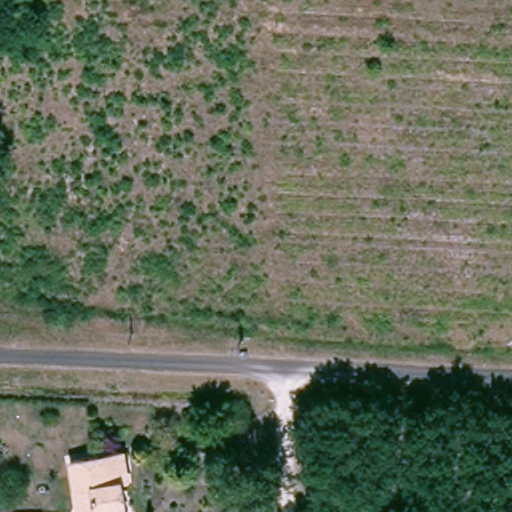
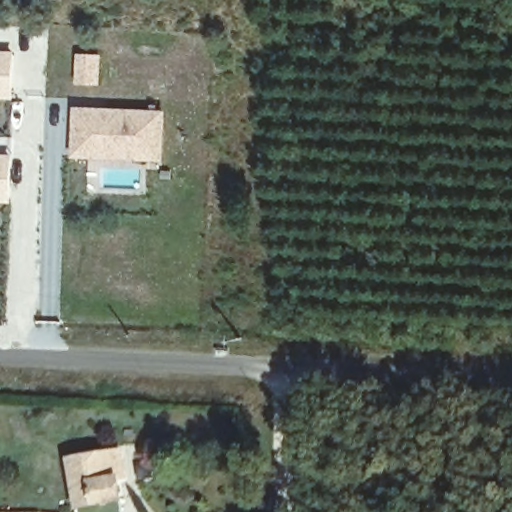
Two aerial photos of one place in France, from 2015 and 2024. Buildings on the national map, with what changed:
new [(14,97),(0,97),(0,49),(15,50),(14,97)]
new [(73,105),(166,109),(163,161),(72,156),(73,105)]
new [(12,201),(0,201),(0,152),(12,152),(12,201)]
unchanged [(67,448),(105,442),(120,438),(127,467),(120,469),(117,470),(125,512),(79,512),(70,467),(67,448)]

